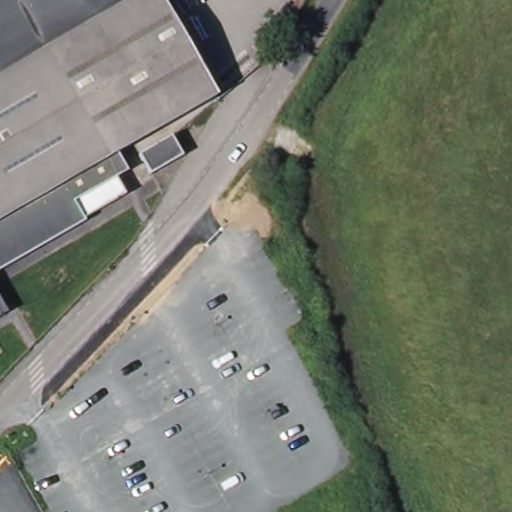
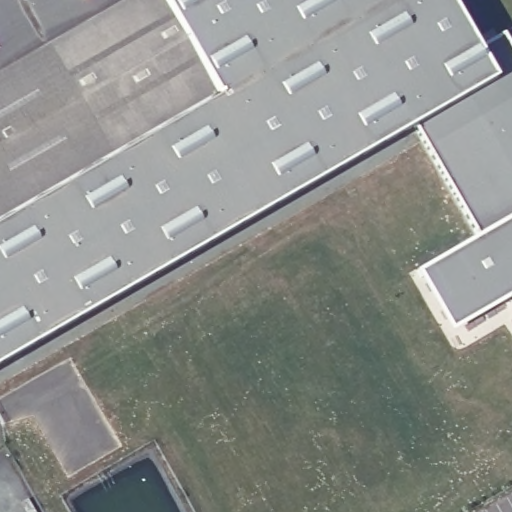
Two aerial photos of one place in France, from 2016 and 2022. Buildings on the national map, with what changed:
demolished [(0,270),(0,0),(162,0),(217,94),(117,151),(128,170),(116,177),(75,201),(84,218),(86,220),(0,270)]
new [(259,154),(275,205),(0,364),(0,0),(333,0),(297,66),(259,154)]
new [(504,34),(512,48),(512,295),(512,294),(454,329),(419,271),(479,237),(415,124),(275,205),(259,154),(297,66),(333,0),(449,0),(478,51),(504,34)]
demolished [(171,135),(183,155),(150,174),(138,154),(171,135)]
demolished [(0,316),(0,298),(8,312),(0,316)]

